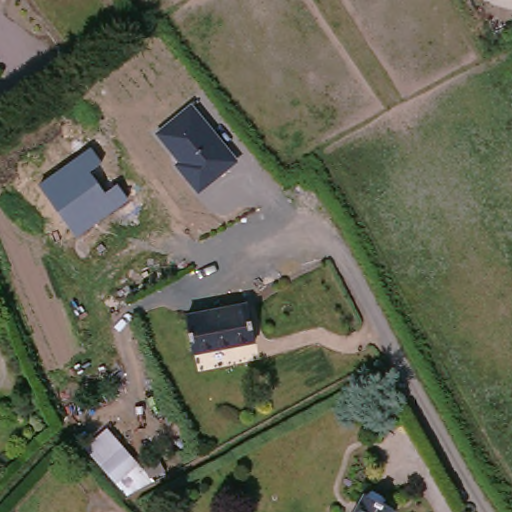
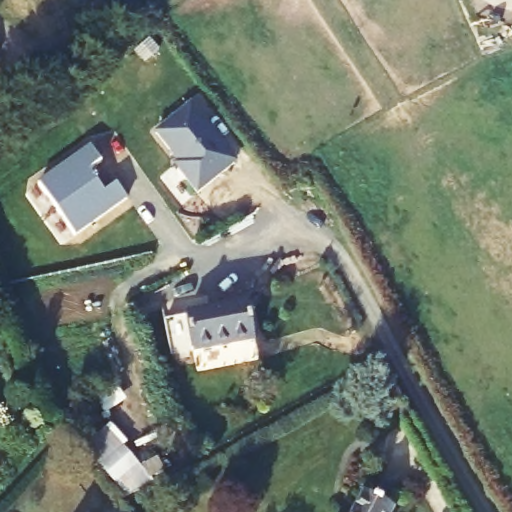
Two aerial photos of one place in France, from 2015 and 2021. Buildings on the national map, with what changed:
unchanged [(196,191),(174,164),(178,161),(155,131),(191,102),(237,159),(196,191)]
unchanged [(75,237),(36,185),(91,147),(102,164),(90,171),(104,191),(119,182),(129,199),(75,237)]
unchanged [(258,341),(193,353),(187,315),(249,302),(258,341)]
unchanged [(126,495),(84,446),(107,427),(153,480),(126,495)]
unchanged [(398,512),(360,512),(367,497),(398,512)]

